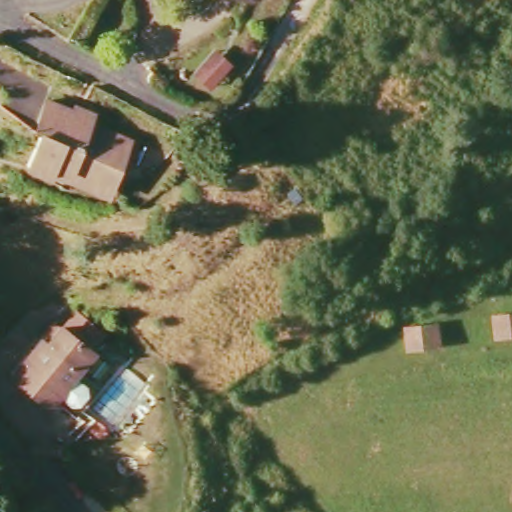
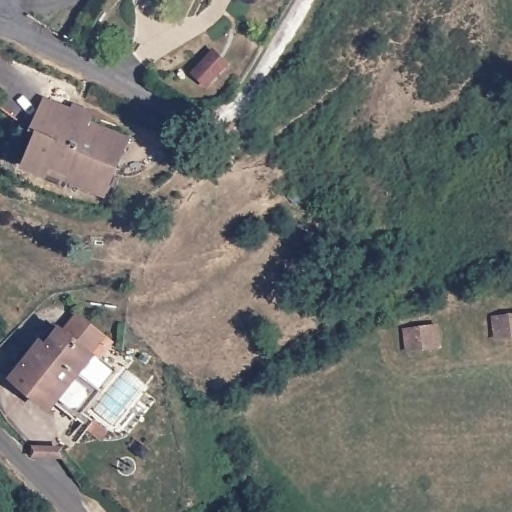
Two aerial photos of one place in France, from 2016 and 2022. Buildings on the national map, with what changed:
unchanged [(63,179),(50,173),(47,180),(19,168),(36,132),(43,99),(70,109),(74,105),(94,114),(91,121),(130,140),(106,202),(63,179)]
unchanged [(79,412),(72,413),(64,410),(60,402),(48,417),(5,380),(44,338),(47,340),(59,325),(75,312),(105,341),(95,360),(77,380),(86,387),(89,396),(89,408),(79,412)]
unchanged [(498,340),(495,317),(512,315),(512,338),(498,340)]
unchanged [(439,325),(441,348),(409,352),(407,328),(439,325)]

